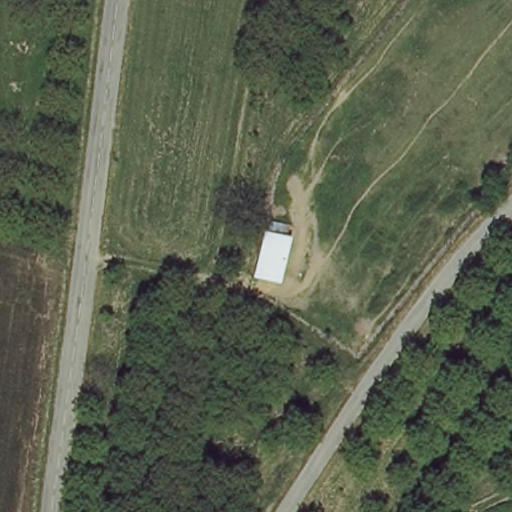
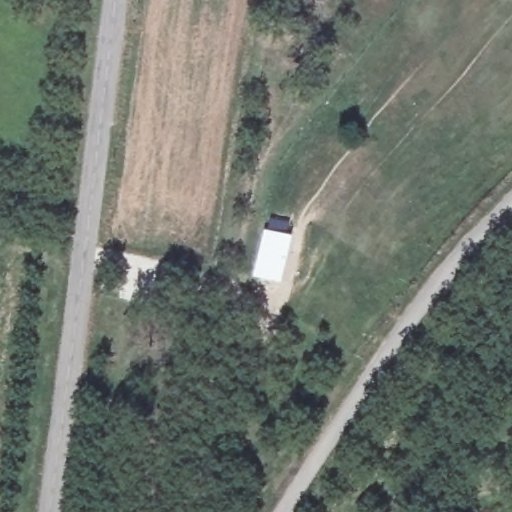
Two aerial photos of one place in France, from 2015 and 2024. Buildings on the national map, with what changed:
unchanged [(256,252),(273,253),(272,285),(253,284),(256,252)]

